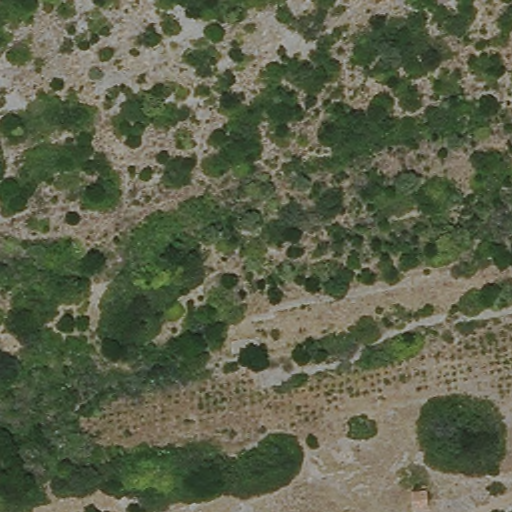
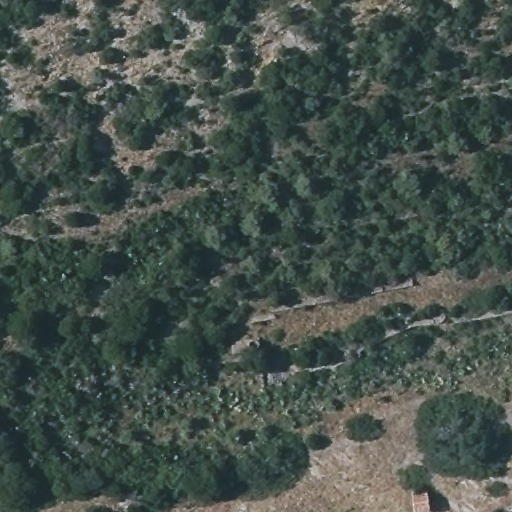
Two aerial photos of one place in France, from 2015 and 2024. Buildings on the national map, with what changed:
unchanged [(436,512),(423,512),(419,497),(433,495),(436,512)]

